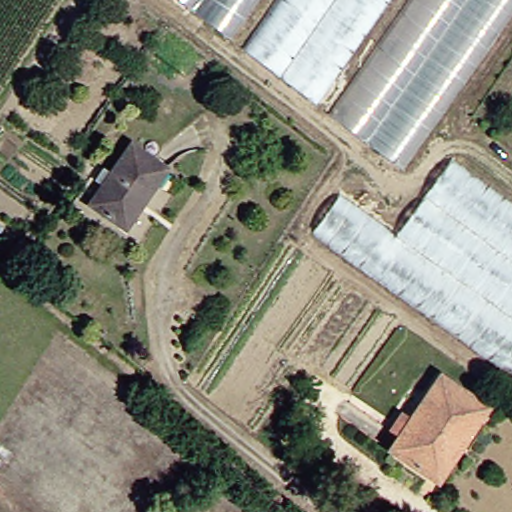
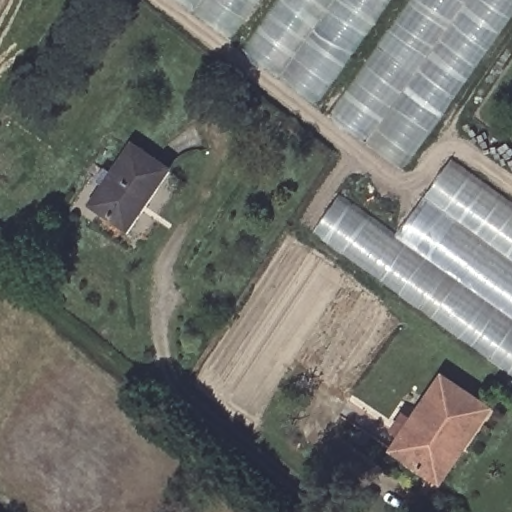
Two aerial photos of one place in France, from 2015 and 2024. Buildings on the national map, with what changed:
unchanged [(219,31),(177,0),(242,0),(219,31)]
unchanged [(305,97),(234,46),(268,0),(376,0),(305,97)]
unchanged [(396,163),(326,118),(411,0),(512,0),(512,3),(396,163)]
unchanged [(85,201),(125,142),(160,165),(120,226),(85,201)]
unchanged [(303,231),(331,189),(386,230),(445,153),(512,201),(512,378),(303,231)]
unchanged [(418,471),(380,446),(393,427),(432,371),(480,405),(455,440),(428,479),(418,471)]

